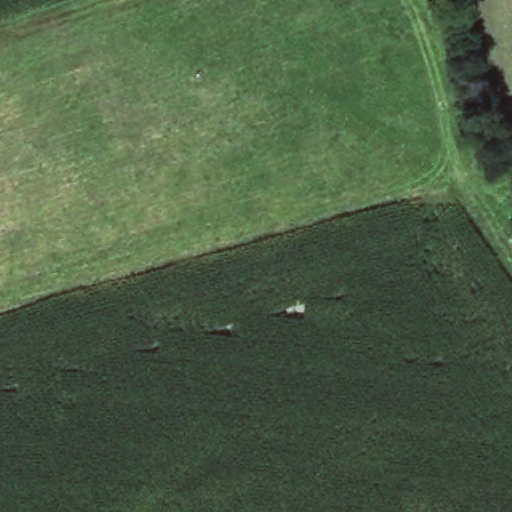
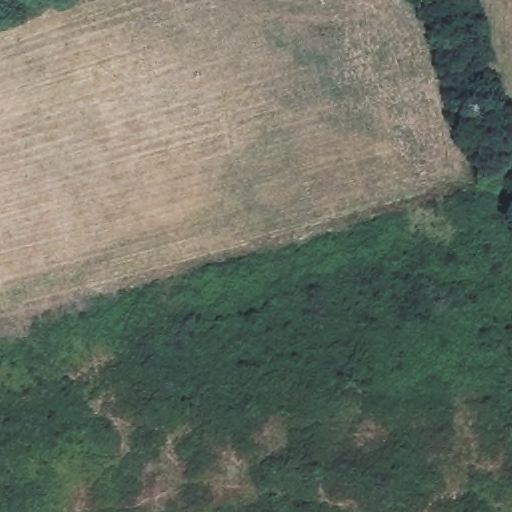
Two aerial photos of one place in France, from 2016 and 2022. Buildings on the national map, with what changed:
[]

